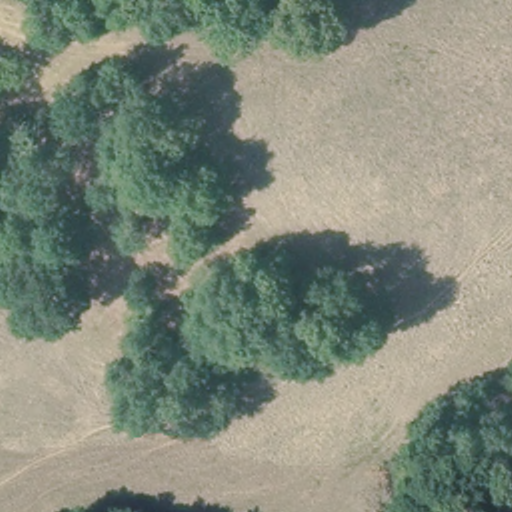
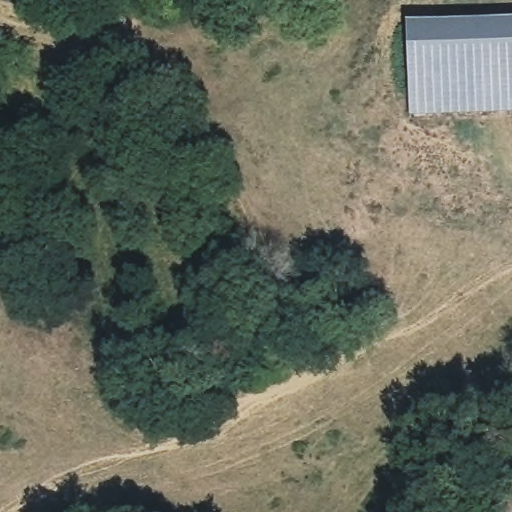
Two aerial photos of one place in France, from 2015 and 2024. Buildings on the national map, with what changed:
new [(409,120),(406,26),(512,22),(512,115),(409,120)]

